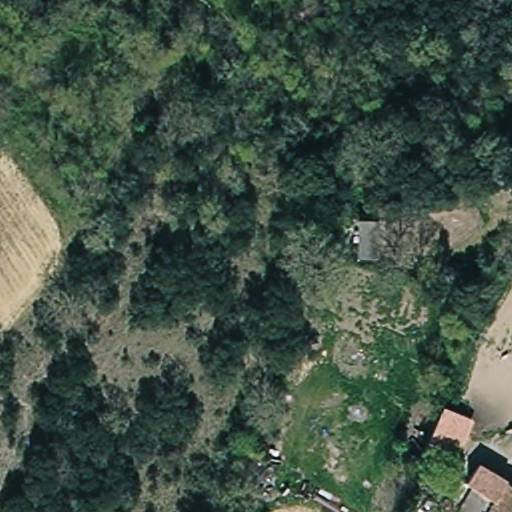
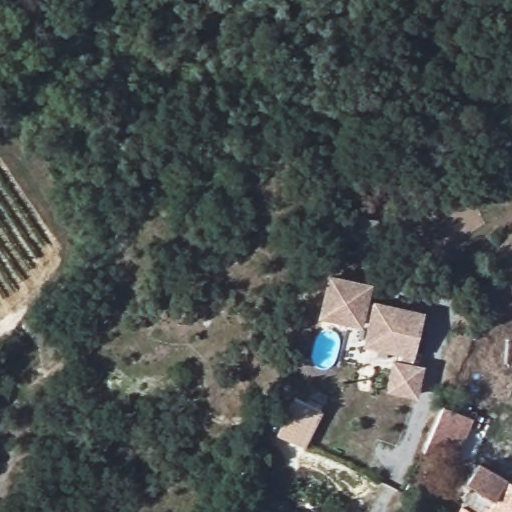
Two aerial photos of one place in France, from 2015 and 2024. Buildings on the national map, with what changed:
unchanged [(359,260),(359,216),(384,218),(384,261),(359,260)]
new [(418,400),(385,392),(392,359),(397,360),(398,354),(363,346),(367,328),(318,317),(328,272),(373,282),(371,299),(426,311),(413,363),(425,366),(418,400)]
new [(305,447),(276,433),(294,398),(323,411),(305,447)]
new [(474,418),(456,460),(426,448),(444,406),(474,418)]
demolished [(468,428),(451,478),(429,470),(446,421),(468,428)]
unchanged [(470,483),(479,467),(512,485),(512,512),(464,512),(478,487),(470,483)]

